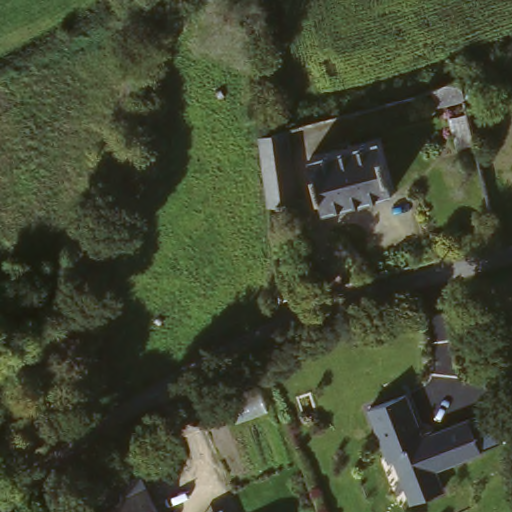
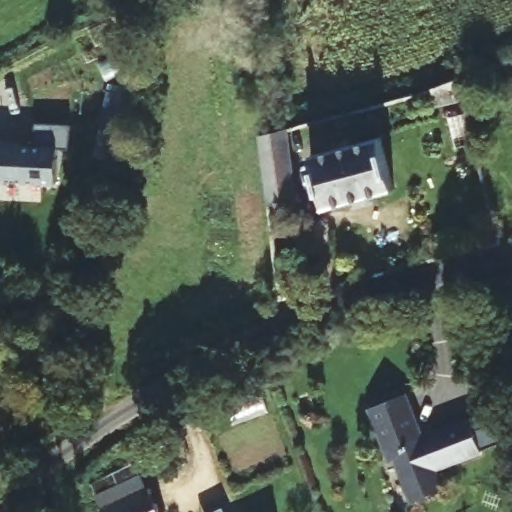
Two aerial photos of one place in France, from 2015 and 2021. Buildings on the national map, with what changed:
unchanged [(463,100),(475,144),(450,151),(429,88),(510,59),(512,68),(512,89),(463,100)]
unchanged [(370,112),(372,123),(360,126),(357,115),(370,112)]
new [(70,149),(57,149),(56,186),(0,183),(0,144),(35,146),(36,124),(72,125),(70,149)]
unchanged [(283,133),(293,204),(267,210),(257,140),(283,133)]
unchanged [(390,195),(320,212),(308,158),(330,153),(328,147),(349,142),(350,148),(377,142),(390,195)]
unchanged [(405,387),(422,430),(468,412),(481,444),(433,464),(442,485),(414,496),(396,452),(384,442),(368,402),(405,387)]
unchanged [(150,486),(160,512),(102,512),(100,509),(150,486)]
unchanged [(228,512),(200,512),(222,500),(228,512)]
unchanged [(269,512),(267,512),(269,511),(269,512)]

